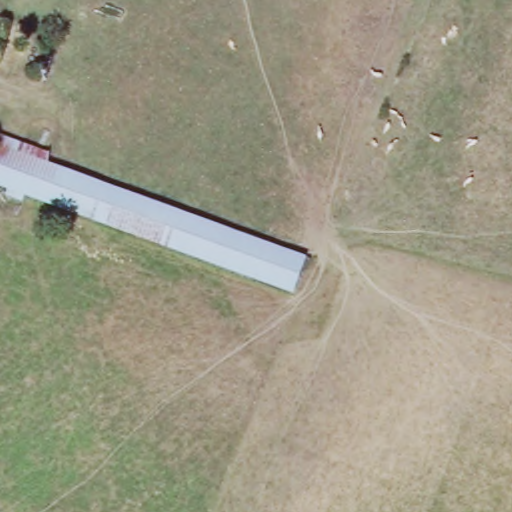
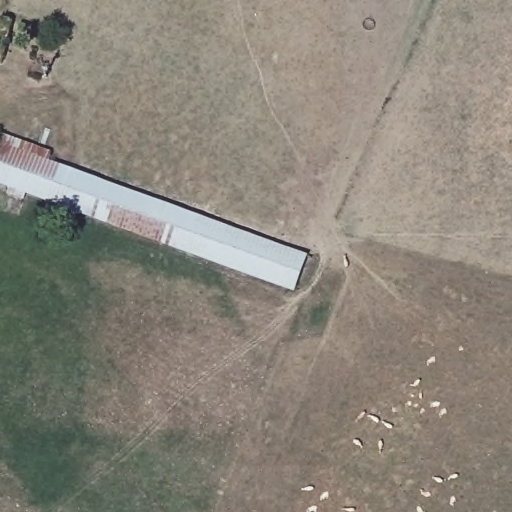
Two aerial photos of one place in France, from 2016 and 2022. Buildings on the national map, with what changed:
unchanged [(53,160),(314,256),(300,294),(0,186),(0,146),(4,135),(55,153),(53,160)]

